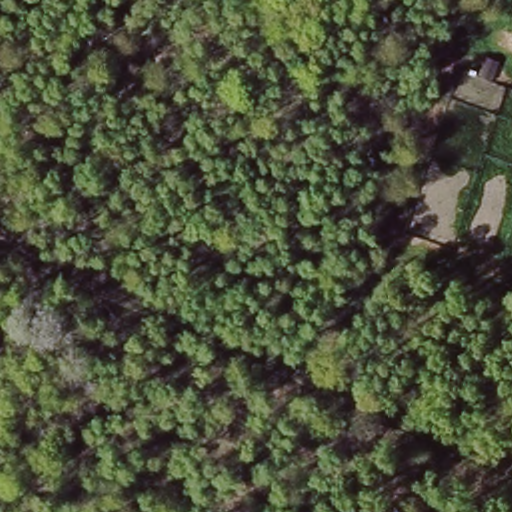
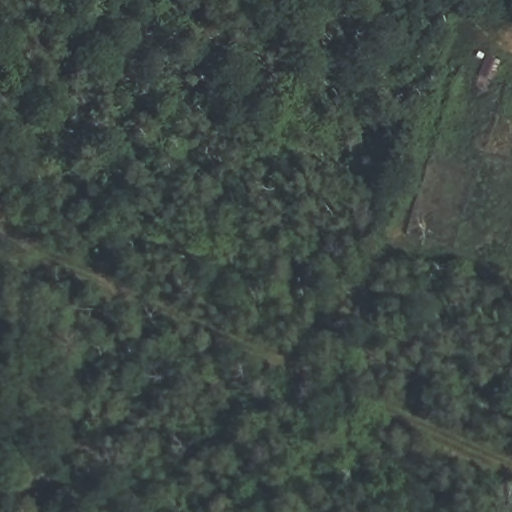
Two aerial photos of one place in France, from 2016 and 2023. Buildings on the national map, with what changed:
unchanged [(502,78),(487,72),(495,52),(512,57),(502,78)]

